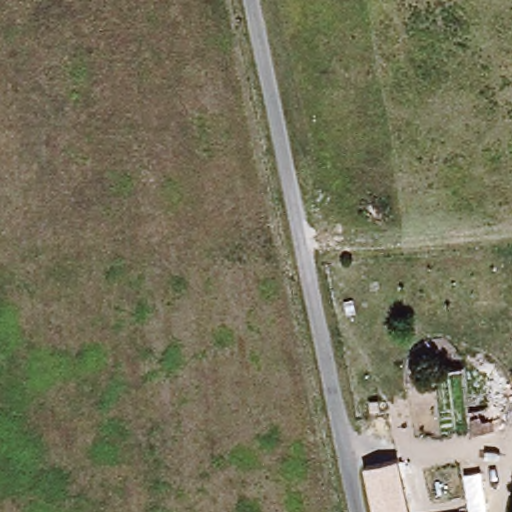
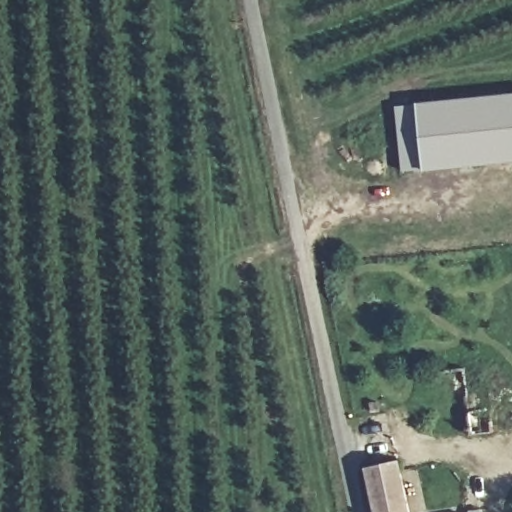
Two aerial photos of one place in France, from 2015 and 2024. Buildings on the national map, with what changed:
new [(401,175),(394,106),(512,93),(512,162),(401,175)]
unchanged [(413,512),(379,512),(370,463),(403,456),(413,512)]

